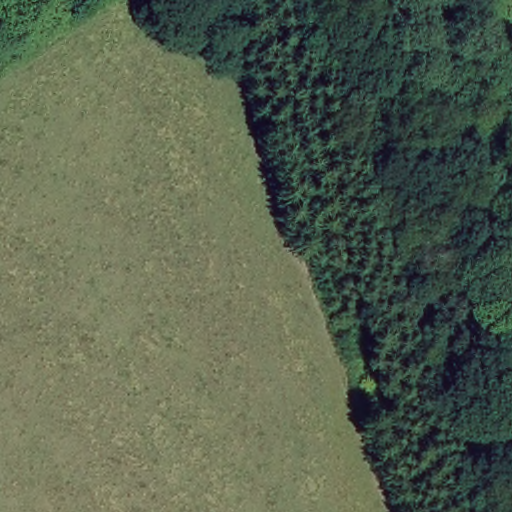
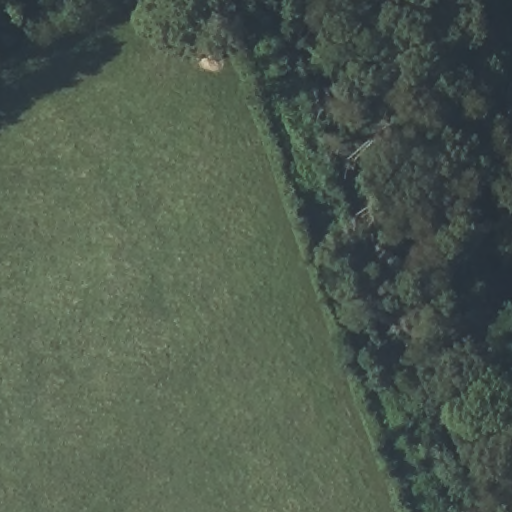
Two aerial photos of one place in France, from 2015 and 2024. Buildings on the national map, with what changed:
[]

